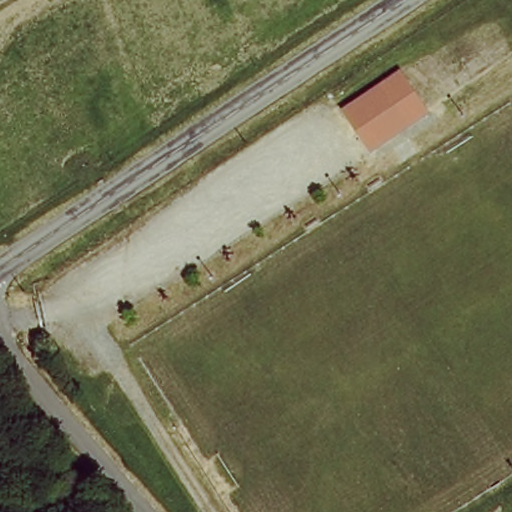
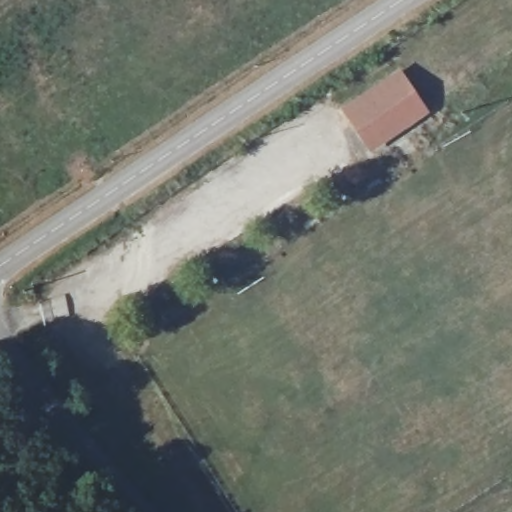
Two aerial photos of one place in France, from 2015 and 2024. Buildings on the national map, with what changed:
unchanged [(341,110),(399,71),(428,113),(415,121),(409,113),(381,132),(387,141),(369,151),(341,110)]

